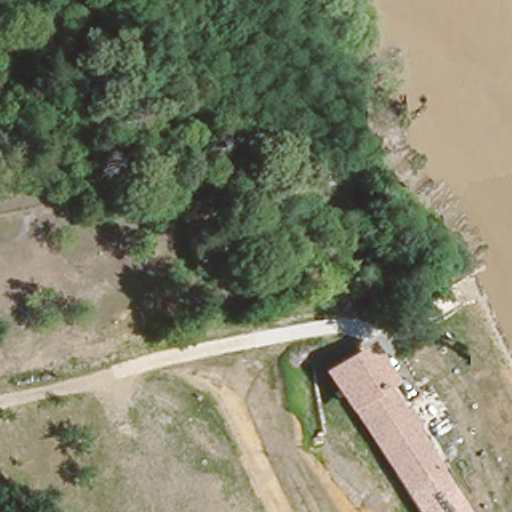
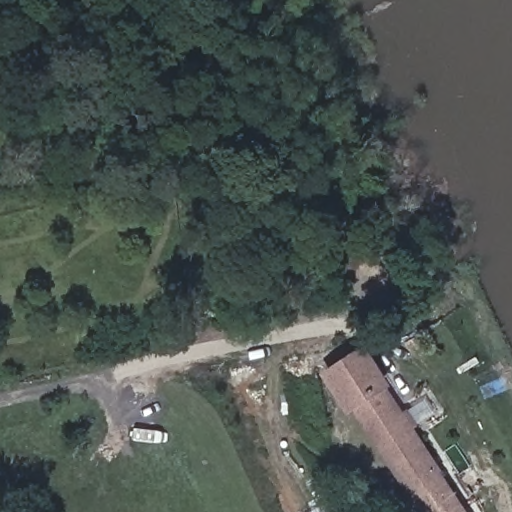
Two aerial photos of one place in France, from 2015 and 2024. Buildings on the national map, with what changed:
unchanged [(373,346),(465,512),(416,512),(334,366),(373,346)]

